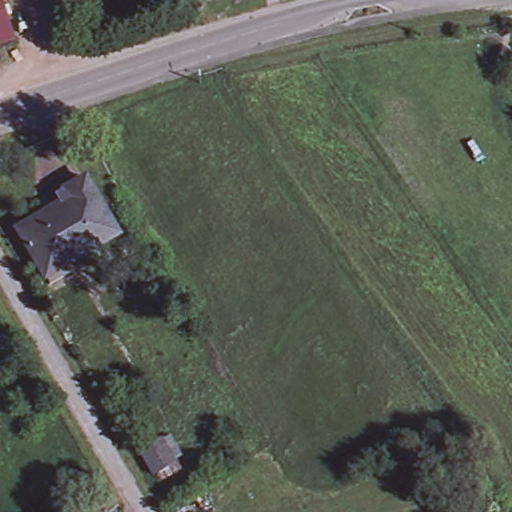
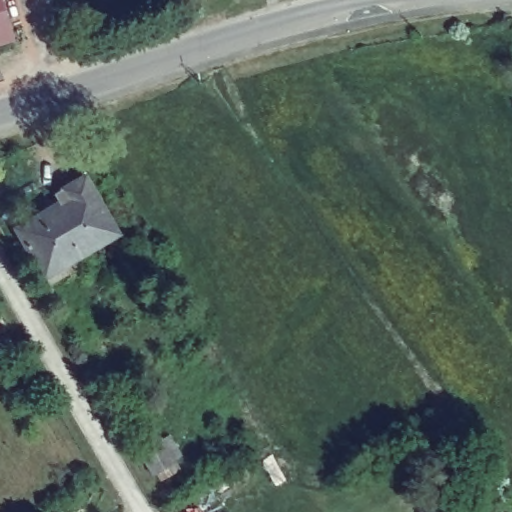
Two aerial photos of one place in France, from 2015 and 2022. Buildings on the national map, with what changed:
unchanged [(0,45),(0,15),(8,43),(0,45)]
unchanged [(52,286),(46,276),(18,230),(69,199),(65,190),(85,179),(118,233),(66,264),(72,274),(52,286)]
unchanged [(19,351),(5,360),(0,350),(0,339),(9,334),(19,351)]
unchanged [(156,477),(142,454),(166,440),(166,442),(173,438),(183,456),(177,460),(179,463),(156,477)]

